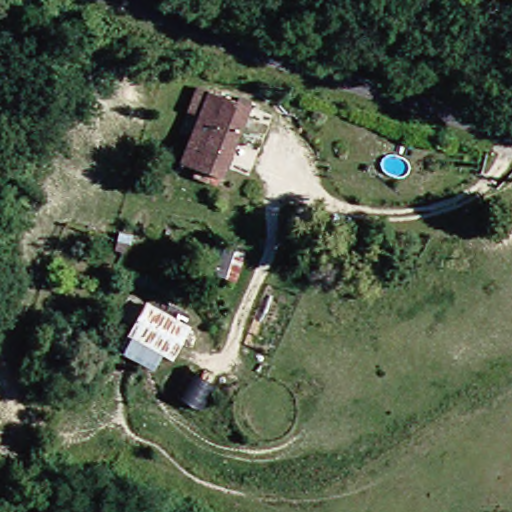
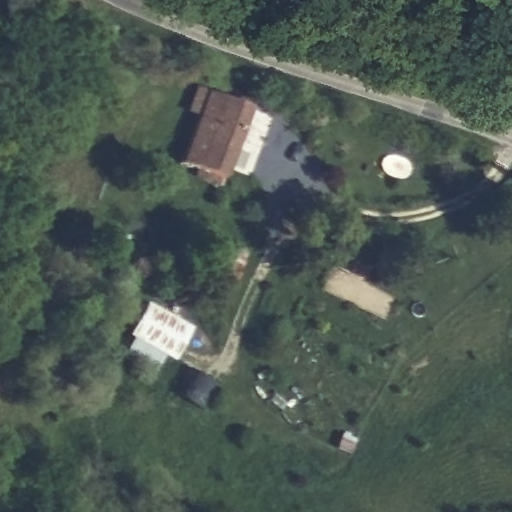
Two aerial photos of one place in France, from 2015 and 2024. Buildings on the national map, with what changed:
unchanged [(195,89),(238,102),(214,175),(172,162),(195,89)]
unchanged [(164,362),(153,356),(145,370),(116,355),(125,340),(120,337),(139,302),(183,327),(164,362)]

